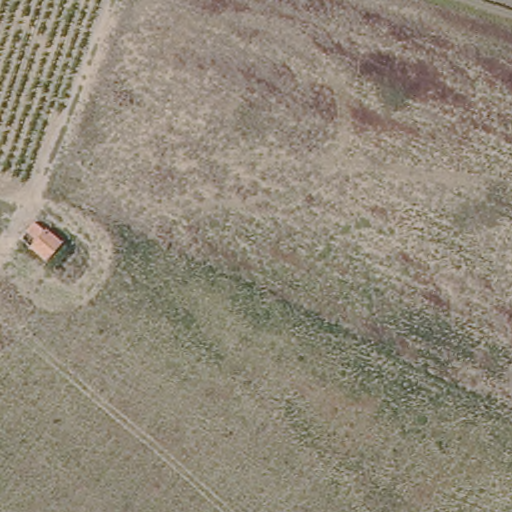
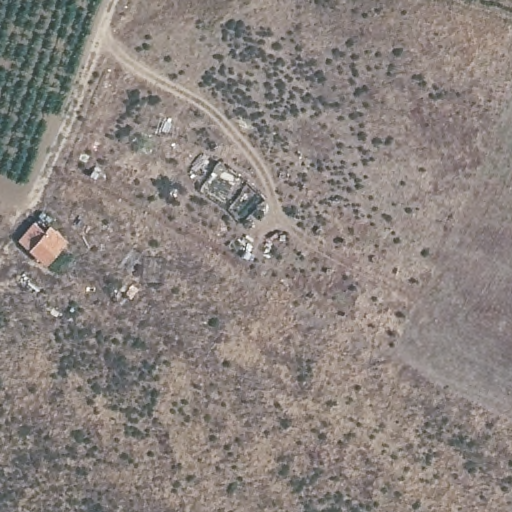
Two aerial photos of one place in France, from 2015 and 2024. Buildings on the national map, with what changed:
unchanged [(66,242),(50,261),(37,250),(37,249),(25,239),(39,223),(51,233),(53,231),(66,242)]

